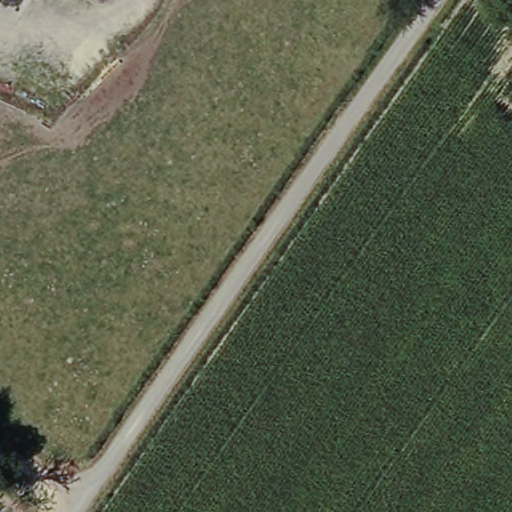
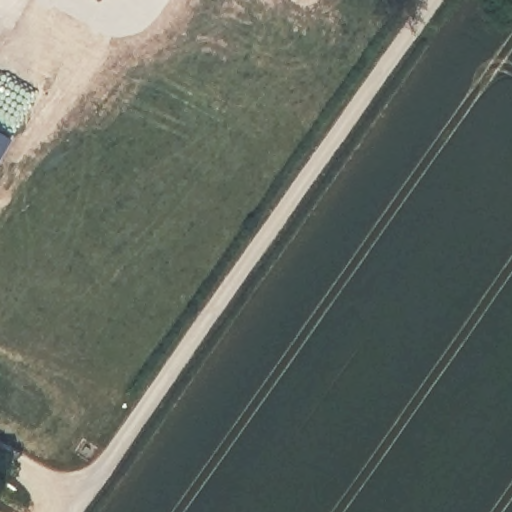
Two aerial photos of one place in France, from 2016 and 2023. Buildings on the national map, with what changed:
unchanged [(101,2),(98,0),(102,0),(101,2)]
new [(14,140),(0,164),(0,131),(14,140)]

